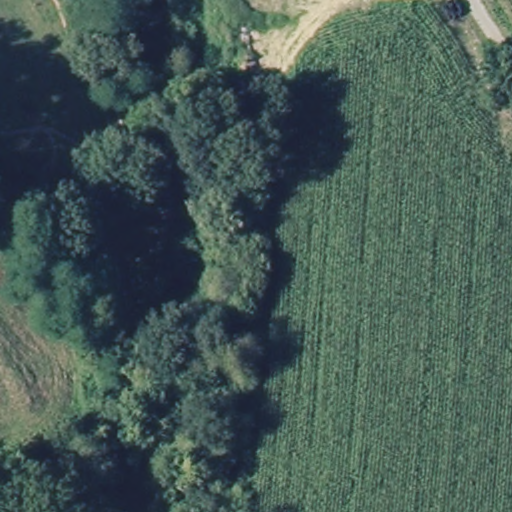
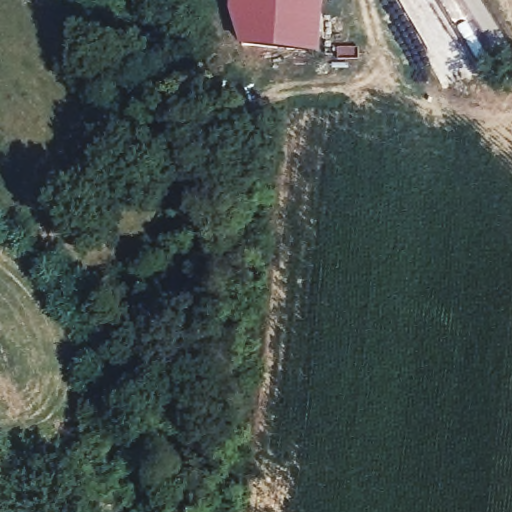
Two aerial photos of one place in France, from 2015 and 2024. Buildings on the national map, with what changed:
new [(324,0),(320,55),(237,47),(229,16),(231,0),(324,0)]

